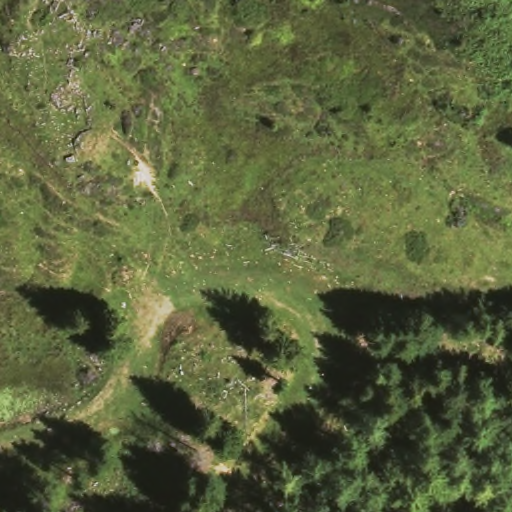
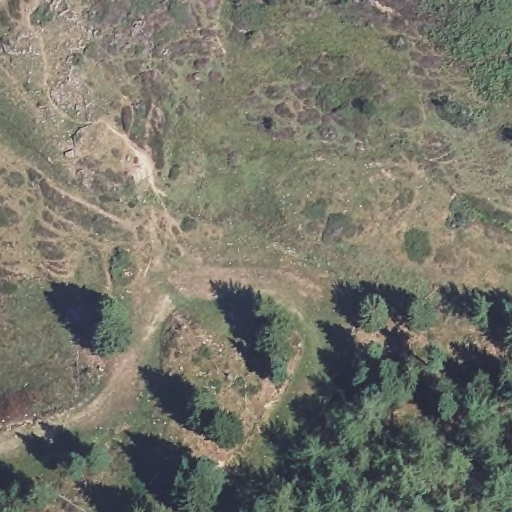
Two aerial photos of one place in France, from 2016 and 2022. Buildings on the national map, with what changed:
unchanged [(152,412),(145,422),(134,437),(111,424),(134,394),(152,412)]

